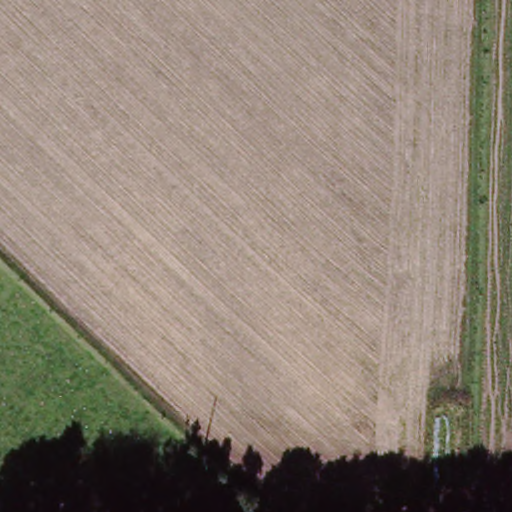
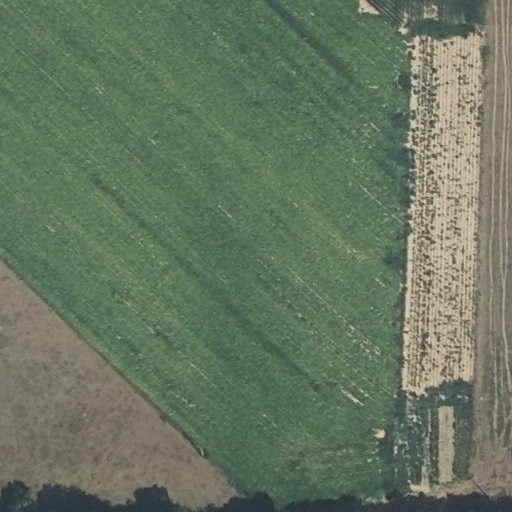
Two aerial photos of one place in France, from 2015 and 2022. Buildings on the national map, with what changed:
[]

